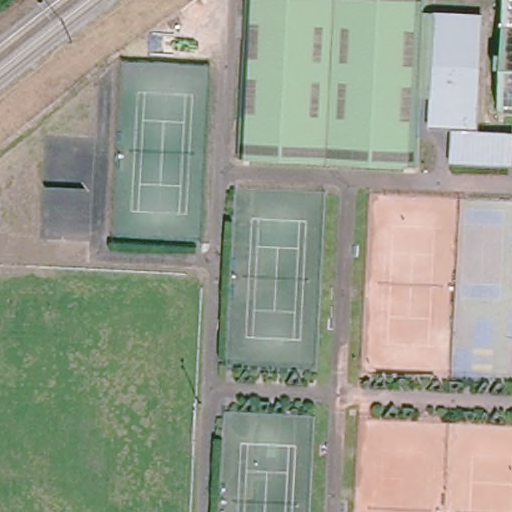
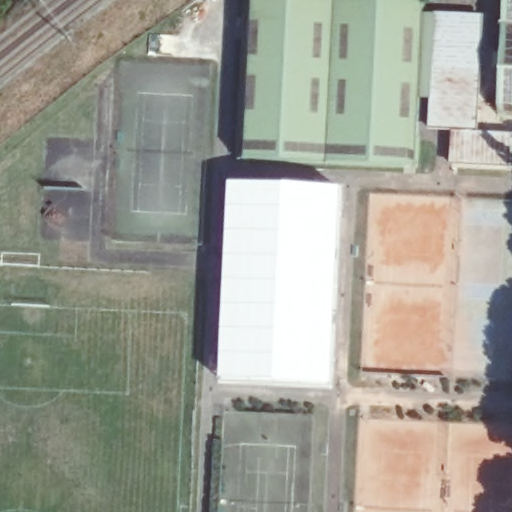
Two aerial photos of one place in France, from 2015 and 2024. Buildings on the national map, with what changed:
unchanged [(240,160),(252,0),(432,0),(431,14),(487,16),(480,133),(512,135),(512,167),(453,164),(456,132),(433,131),(435,101),(426,101),(422,170),(240,160)]
unchanged [(506,0),(512,0),(512,114),(499,113),(506,0)]
new [(227,180),(340,186),(332,296),(329,386),(218,382),(227,180)]

